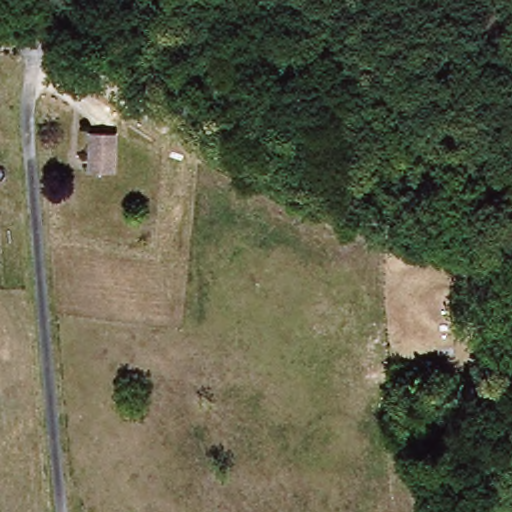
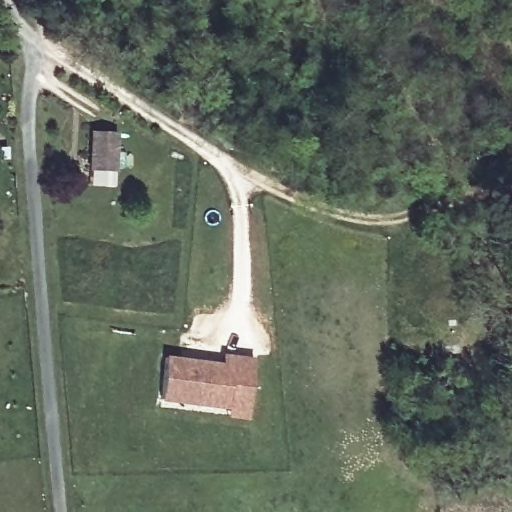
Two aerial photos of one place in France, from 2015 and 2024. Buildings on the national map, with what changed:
unchanged [(93,172),(94,132),(123,134),(120,174),(93,172)]
new [(160,401),(165,358),(221,365),(222,356),(233,357),(254,360),(249,397),(247,418),(226,416),(226,409),(160,401)]

